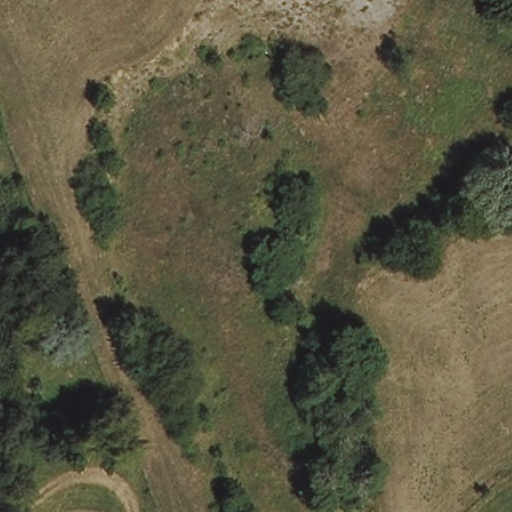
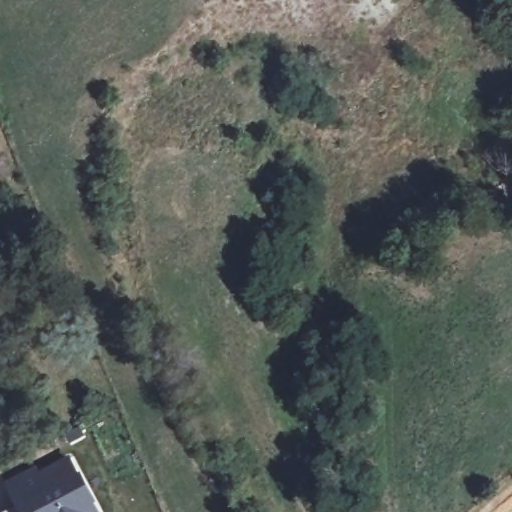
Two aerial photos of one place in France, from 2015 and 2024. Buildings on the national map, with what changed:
new [(0,512),(14,504),(2,482),(36,463),(40,470),(70,453),(103,512),(0,512)]

